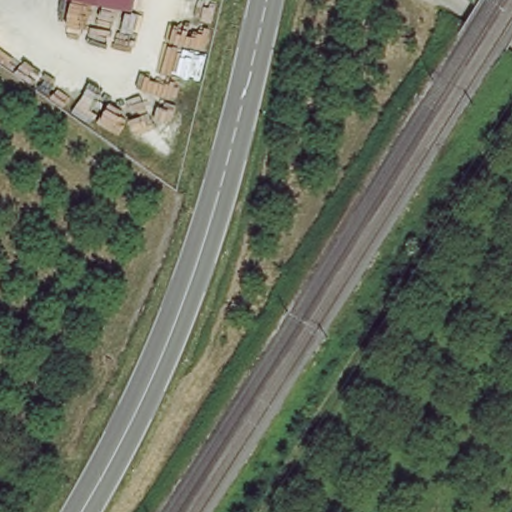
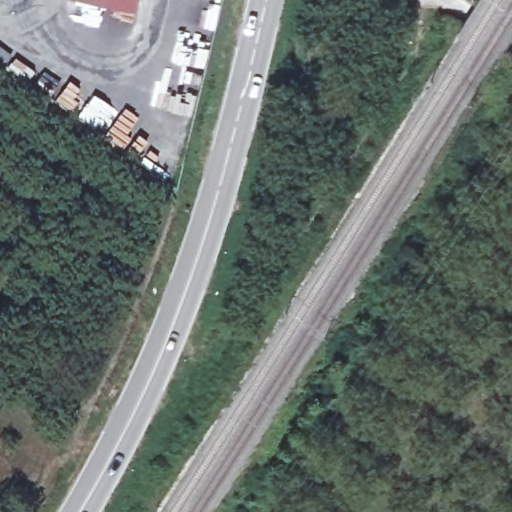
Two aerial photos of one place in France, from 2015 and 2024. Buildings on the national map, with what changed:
unchanged [(91,0),(135,0),(133,8),(91,0)]

